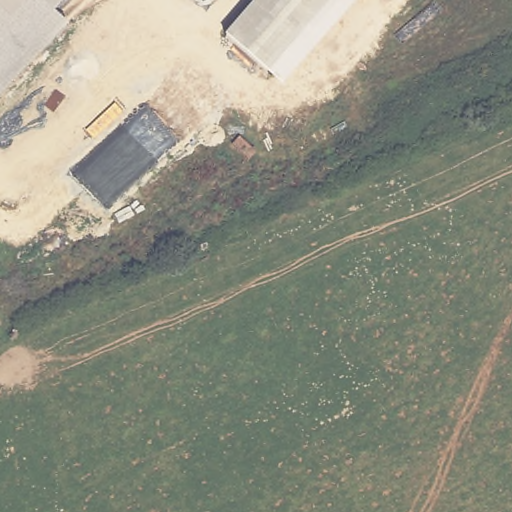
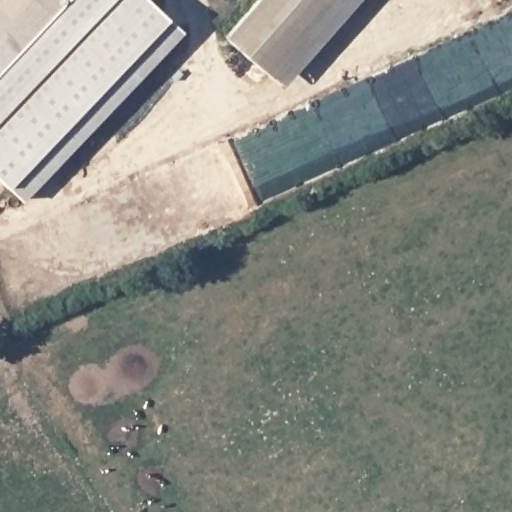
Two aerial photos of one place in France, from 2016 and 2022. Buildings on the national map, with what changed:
unchanged [(66,21),(1,96),(0,97),(0,0),(41,0),(50,7),(66,21)]
new [(185,30),(24,200),(0,177),(0,97),(1,96),(66,21),(50,7),(57,0),(152,0),(185,30)]
unchanged [(50,7),(41,0),(57,0),(50,7)]
unchanged [(269,75),(226,38),(259,0),(335,0),(269,75)]
new [(282,86),(269,75),(335,0),(358,0),(282,86)]

